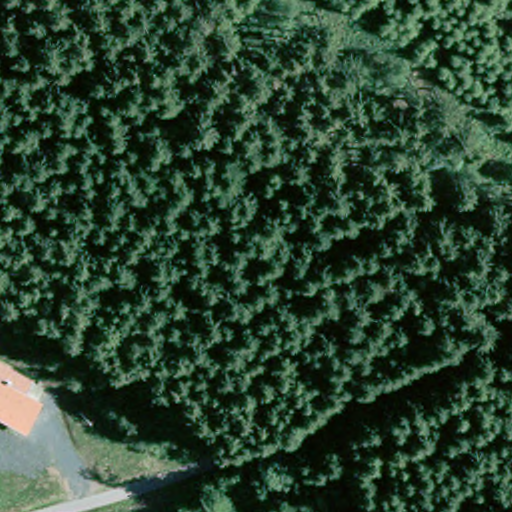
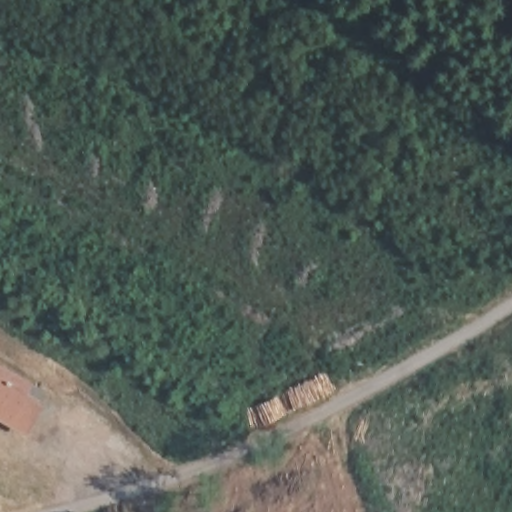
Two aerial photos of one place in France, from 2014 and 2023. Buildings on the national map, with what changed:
unchanged [(28,428),(14,421),(0,412),(0,363),(36,385),(28,397),(41,405),(28,428)]

